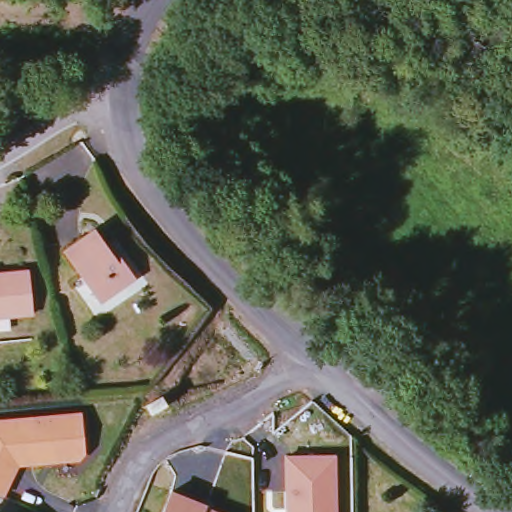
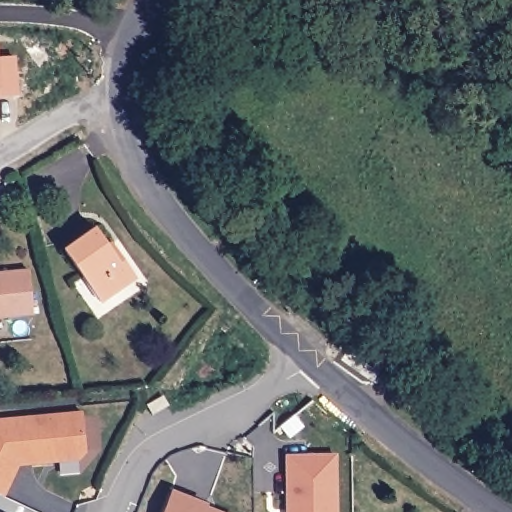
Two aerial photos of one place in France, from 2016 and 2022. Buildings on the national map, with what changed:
new [(15,96),(0,97),(0,57),(12,56),(15,96)]
unchanged [(121,292),(102,306),(58,249),(91,224),(103,241),(108,238),(122,256),(133,269),(140,277),(121,292)]
unchanged [(0,270),(27,268),(30,313),(0,316),(0,270)]
unchanged [(77,459),(18,464),(5,494),(0,492),(0,416),(80,409),(83,452),(77,459)]
unchanged [(336,512),(285,512),(282,454),(335,452),(336,512)]
unchanged [(171,488),(205,501),(205,505),(223,512),(161,512),(171,488)]

